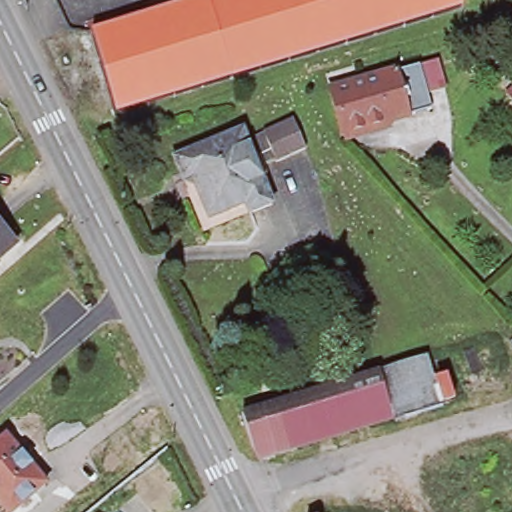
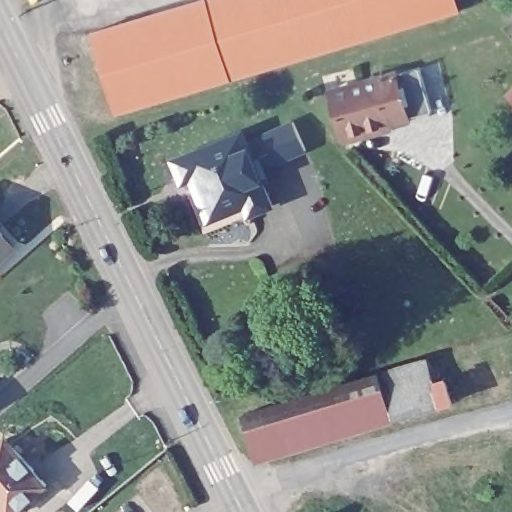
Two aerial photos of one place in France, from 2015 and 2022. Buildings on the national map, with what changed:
unchanged [(113,117),(100,77),(87,36),(207,0),(459,0),(462,11),(113,117)]
unchanged [(419,70),(430,115),(388,125),(377,80),(419,70)]
unchanged [(377,80),(388,125),(340,137),(328,92),(377,80)]
unchanged [(295,117),(310,145),(282,160),(266,133),(295,117)]
unchanged [(277,205),(255,214),(252,206),(214,220),(198,180),(187,183),(178,157),(237,134),(247,130),(274,197),(277,205)]
unchanged [(0,266),(0,230),(18,250),(0,266)]
unchanged [(432,367),(442,406),(391,419),(389,409),(382,379),(432,367)]
unchanged [(252,441),(245,411),(382,379),(389,409),(274,436),(275,444),(255,448),(253,449),(252,441)]
unchanged [(46,483),(34,493),(40,500),(27,512),(15,512),(14,510),(11,512),(0,512),(0,437),(5,433),(46,483)]

